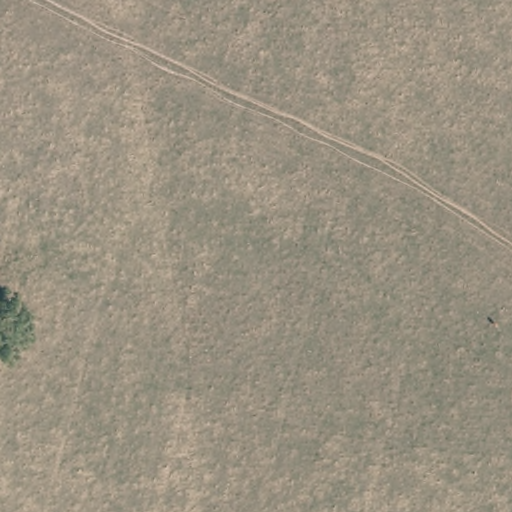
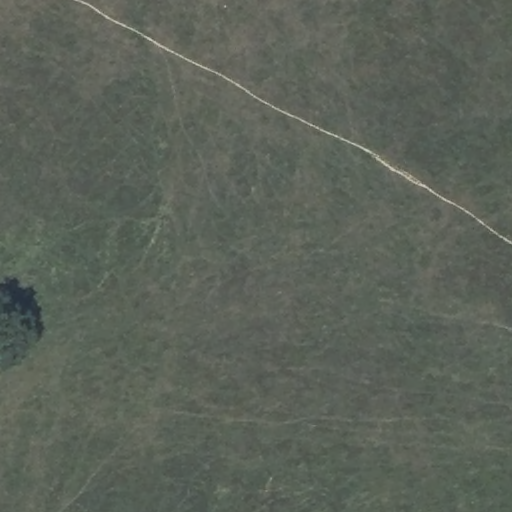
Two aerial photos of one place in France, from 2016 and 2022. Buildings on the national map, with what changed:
[]

